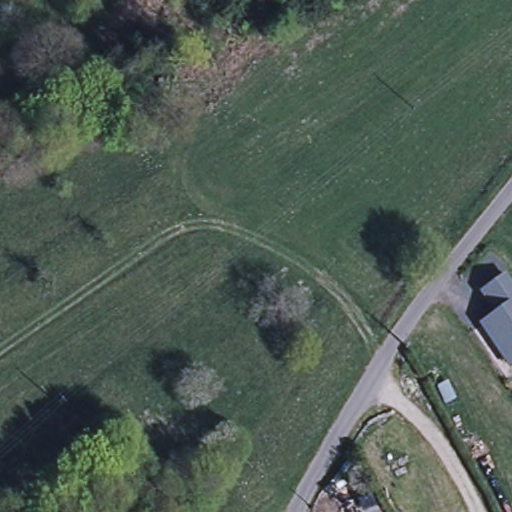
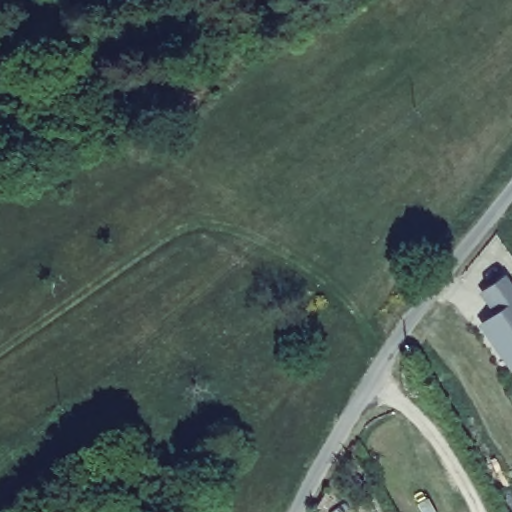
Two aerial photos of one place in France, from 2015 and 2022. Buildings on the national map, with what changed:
unchanged [(512,285),(512,365),(484,325),(498,315),(483,293),(507,277),(512,285)]

